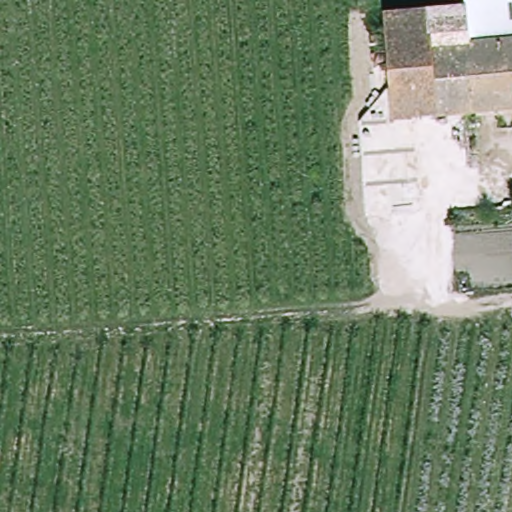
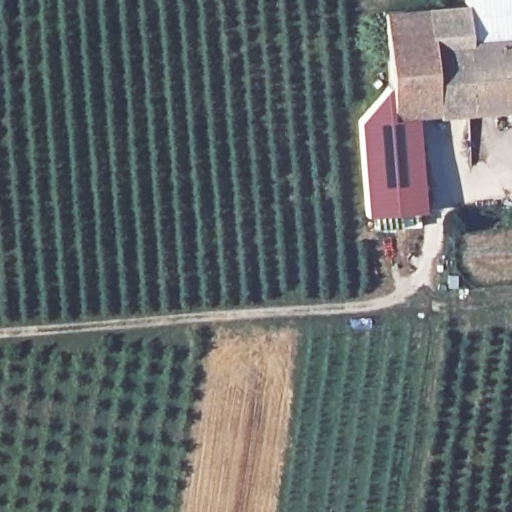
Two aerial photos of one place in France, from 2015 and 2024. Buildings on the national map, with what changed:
unchanged [(469,0),(512,0),(512,110),(478,113),(419,118),(408,119),(395,120),(387,14),(469,7),(469,0)]
new [(426,211),(367,218),(359,120),(386,88),(393,87),(395,120),(408,119),(418,118),(426,211)]

